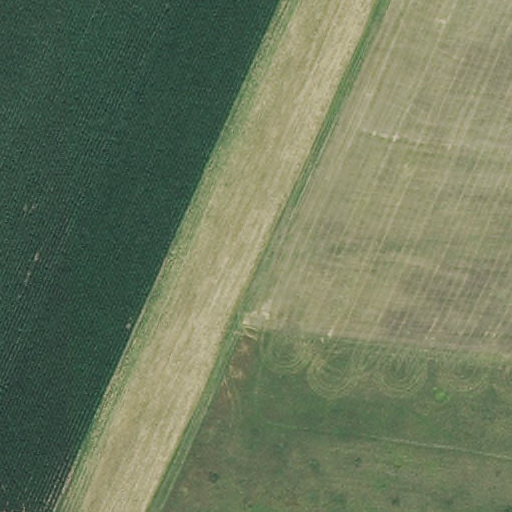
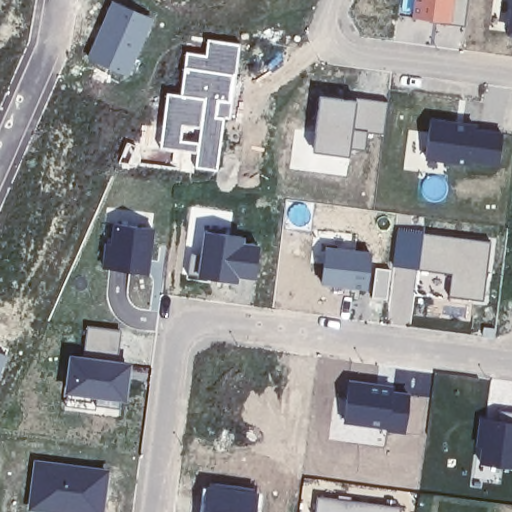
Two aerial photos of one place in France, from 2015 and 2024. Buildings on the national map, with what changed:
new [(115,0),(154,16),(127,74),(85,55),(110,0),(115,0)]
new [(467,0),(464,24),(411,17),(413,0),(467,0)]
new [(512,0),(512,35),(505,34),(505,22),(498,21),(501,0),(512,0)]
new [(165,90),(178,91),(184,49),(203,52),(205,36),(241,41),(232,119),(225,118),(217,171),(192,168),(195,154),(156,148),(165,90)]
new [(318,93),(387,99),(383,133),(367,130),(365,151),(350,149),(349,155),(311,150),(318,93)]
new [(429,115),(476,122),(476,125),(503,129),(498,165),(422,158),(429,115)]
new [(106,223),(106,210),(123,207),(141,212),(152,214),(151,226),(154,227),(149,273),(100,266),(106,223)]
new [(396,224),(423,230),(418,269),(391,267),(396,224)]
new [(202,228),(245,234),(245,240),(260,243),(255,277),(238,275),(237,281),(194,274),(202,228)]
new [(423,230),(492,239),(483,300),(447,294),(450,273),(418,269),(423,230)]
new [(316,238),(372,249),(371,266),(370,288),(320,283),(321,263),(313,262),(316,238)]
new [(370,288),(371,266),(391,267),(418,269),(411,324),(388,323),(390,299),(370,297),(370,288)]
new [(82,354),(82,349),(86,324),(120,329),(117,354),(117,359),(131,361),(125,402),(62,394),(68,352),(82,354)]
new [(0,373),(0,351),(8,354),(0,373)]
new [(347,378),(378,383),(411,393),(405,431),(342,421),(347,378)]
new [(479,414),(486,415),(487,408),(512,412),(512,467),(476,462),(478,450),(474,449),(479,414)]
new [(33,457),(109,468),(102,512),(56,512),(26,508),(33,457)]
new [(203,482),(257,488),(255,512),(200,512),(203,482)]

